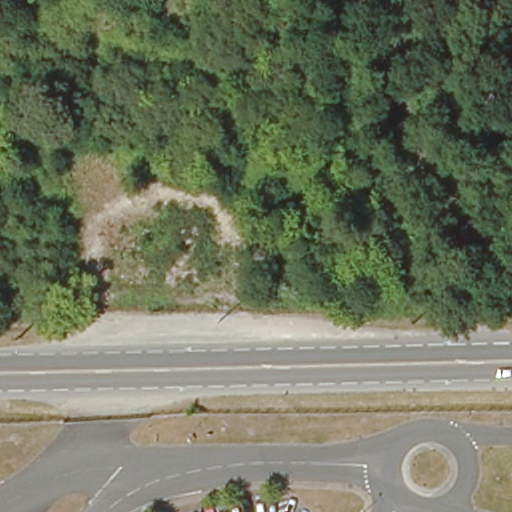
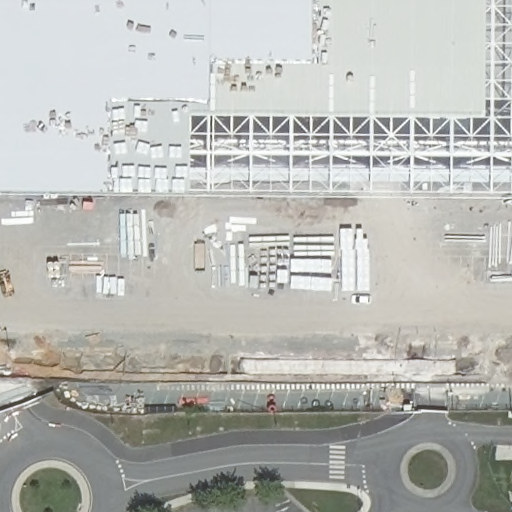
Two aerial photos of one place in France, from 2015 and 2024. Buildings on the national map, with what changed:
new [(512,0),(512,198),(0,197),(0,0),(512,0)]
demolished [(113,252),(161,252),(161,215),(211,215),(211,297),(127,300),(126,294),(113,294),(113,252)]

